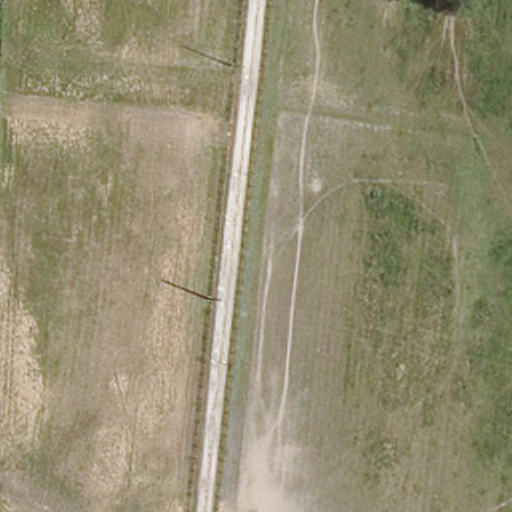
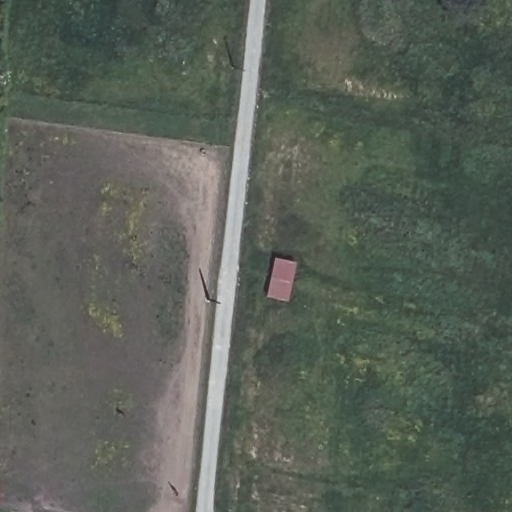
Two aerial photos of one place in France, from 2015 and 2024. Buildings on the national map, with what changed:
[]

